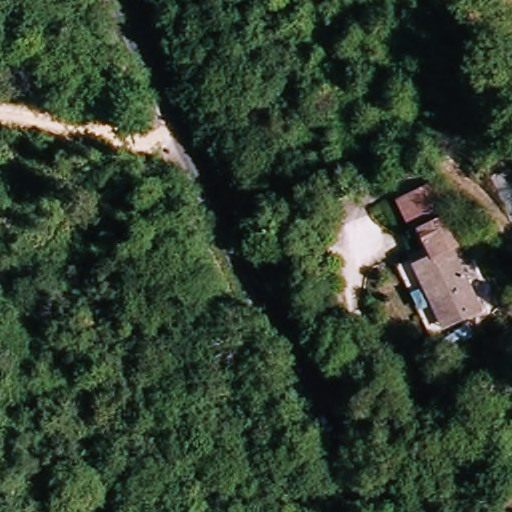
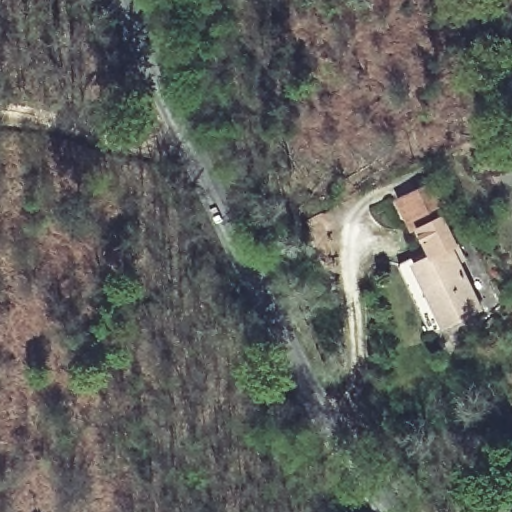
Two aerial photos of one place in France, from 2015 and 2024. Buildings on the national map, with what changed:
unchanged [(449,221),(426,232),(421,235),(396,184),(423,170),(449,221)]
unchanged [(462,248),(457,250),(488,312),(452,330),(421,267),(438,258),(426,232),(449,221),(462,248)]

